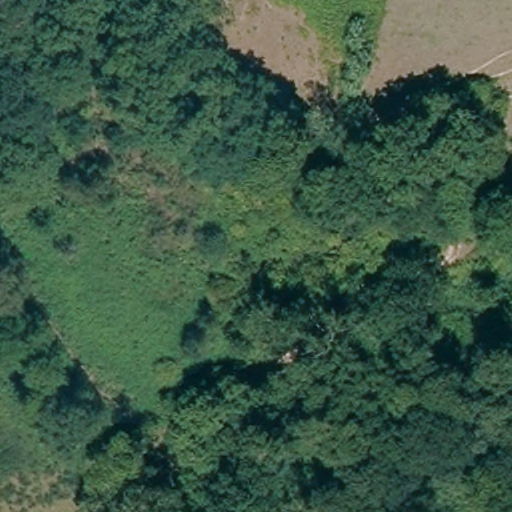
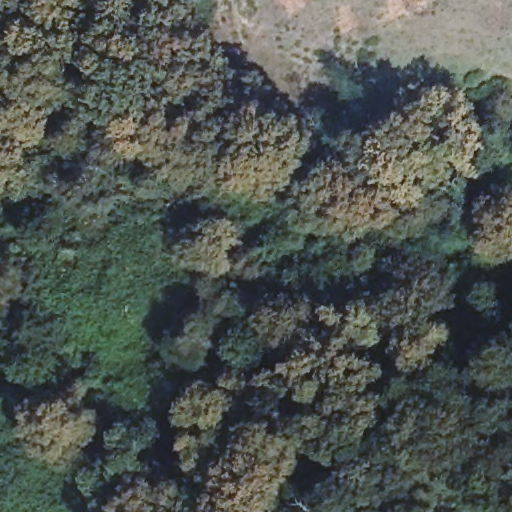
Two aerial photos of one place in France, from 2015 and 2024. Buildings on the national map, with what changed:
[]

